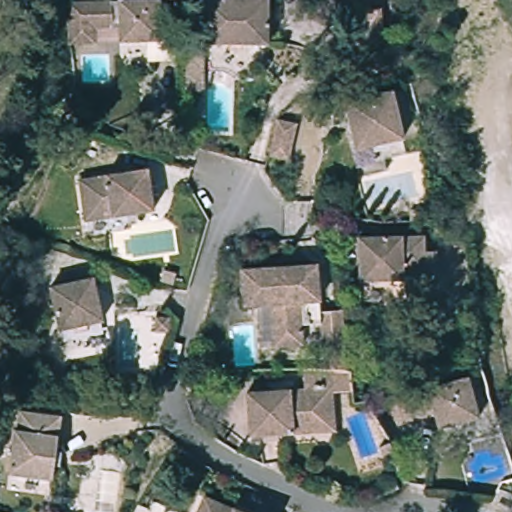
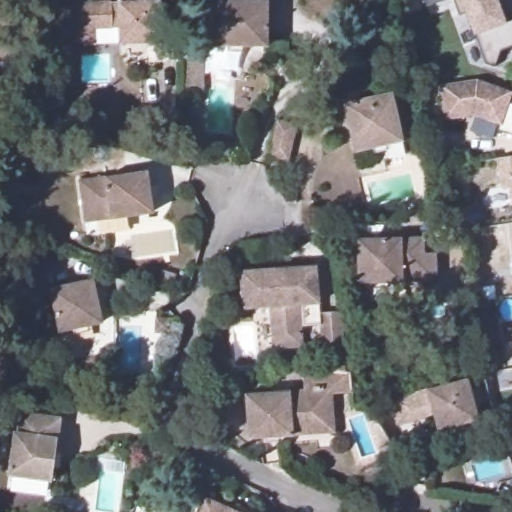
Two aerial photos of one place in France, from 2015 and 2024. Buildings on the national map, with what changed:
unchanged [(205,3),(269,0),(271,46),(207,48),(205,3)]
new [(419,0),(437,0),(422,6),(419,0)]
new [(512,18),(512,47),(505,50),(499,70),(489,66),(465,11),(457,15),(451,0),(500,0),(509,20),(512,18)]
unchanged [(69,45),(70,3),(112,3),(114,43),(95,46),(69,45)]
unchanged [(160,3),(161,44),(120,45),(119,4),(160,3)]
unchanged [(375,14),(376,46),(345,48),(345,16),(375,14)]
new [(481,83),(512,93),(512,105),(512,137),(501,134),(502,129),(477,120),(442,125),(437,89),(481,83)]
unchanged [(351,156),(348,142),(337,97),(384,86),(395,131),(399,146),(351,156)]
unchanged [(290,140),(287,150),(284,160),(265,155),(270,135),(290,140)]
unchanged [(512,160),(512,189),(503,191),(499,161),(512,160)]
unchanged [(83,238),(80,221),(72,181),(142,168),(150,208),(123,213),(126,230),(83,238)]
unchanged [(358,244),(424,242),(424,258),(435,258),(436,270),(358,272),(358,244)]
unchanged [(316,316),(296,318),(298,340),(268,342),(264,300),(238,303),(235,265),(301,259),(311,258),(314,292),(315,308),(316,316)]
unchanged [(436,270),(437,286),(359,288),(358,272),(436,270)]
unchanged [(54,333),(45,289),(89,280),(98,324),(54,333)]
unchanged [(336,306),(341,364),(327,363),(326,363),(324,338),(318,339),(316,316),(315,308),(336,306)]
unchanged [(213,362),(220,363),(219,370),(198,368),(203,346),(214,347),(213,362)]
unchanged [(242,389),(269,387),(283,386),(300,385),(299,369),(344,365),(345,387),(327,388),(328,407),(329,410),(307,412),(303,412),(304,429),(255,433),(245,433),(242,389)]
unchanged [(433,433),(425,392),(470,374),(475,419),(433,433)]
unchanged [(19,428),(22,408),(60,413),(51,477),(9,472),(14,428),(19,428)]
unchanged [(304,429),(303,412),(307,412),(329,410),(330,423),(330,427),(329,427),(329,436),(274,440),(275,459),(264,460),(257,461),(257,457),(255,433),(304,429)]
unchanged [(196,496),(234,512),(189,512),(196,496)]

